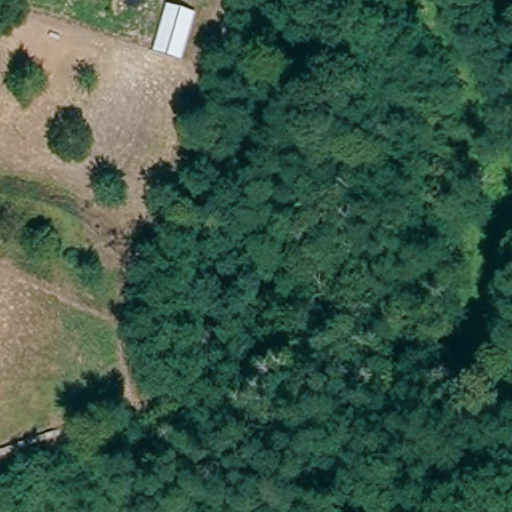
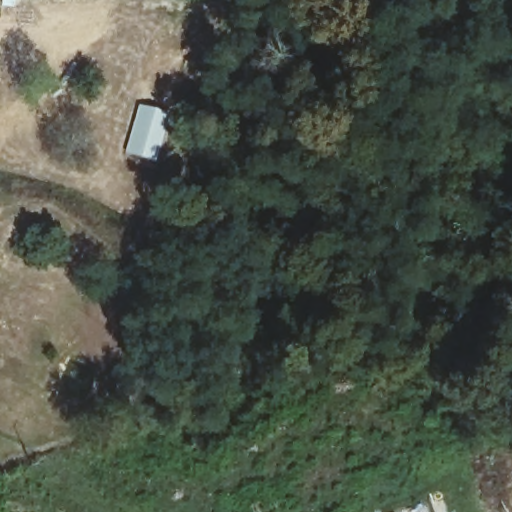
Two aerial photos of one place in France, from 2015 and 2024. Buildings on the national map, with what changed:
unchanged [(184,52),(170,100),(140,92),(155,44),(184,52)]
new [(171,112),(156,160),(127,152),(141,104),(171,112)]

